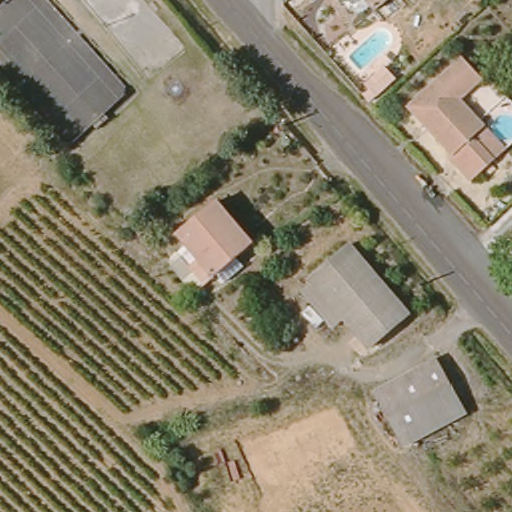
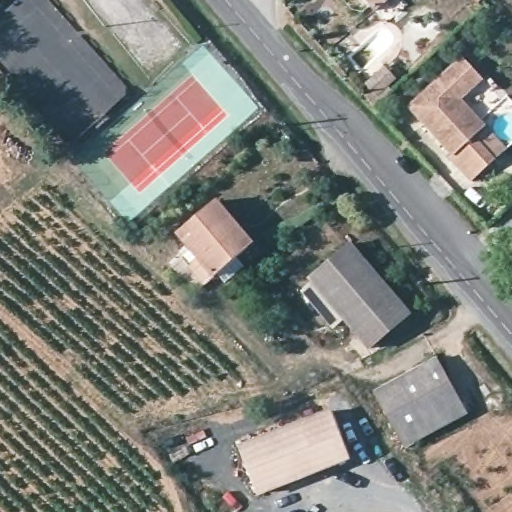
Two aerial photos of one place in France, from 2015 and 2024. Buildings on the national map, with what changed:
unchanged [(373,0),(392,0),(381,9),(373,0)]
unchanged [(464,58),(484,79),(464,98),(489,125),(478,136),(498,158),(474,181),(453,159),(456,155),(412,107),(464,58)]
unchanged [(228,218),(249,240),(243,247),(211,273),(196,257),(176,231),(213,199),(228,218)]
unchanged [(368,347),(346,320),(333,330),(299,289),(351,243),(411,312),(368,347)]
unchanged [(449,384),(384,416),(371,393),(439,359),(449,384)]
unchanged [(384,416),(449,384),(464,416),(401,449),(384,416)]
new [(332,411),(351,458),(259,496),(240,450),(332,411)]

